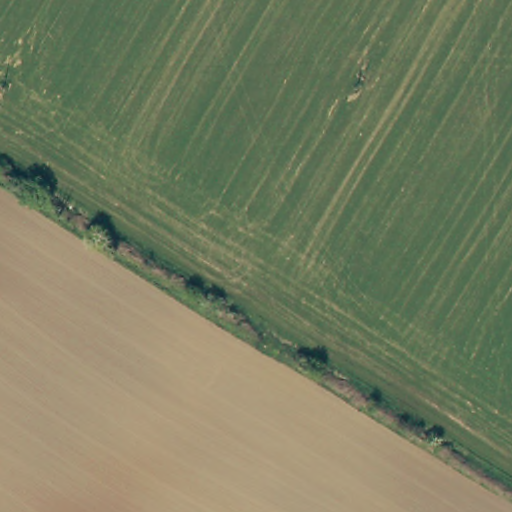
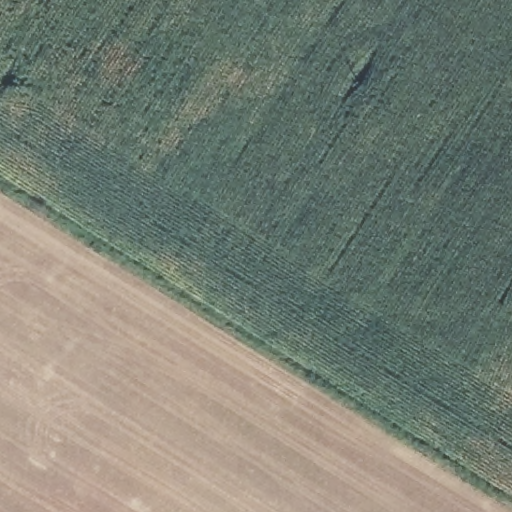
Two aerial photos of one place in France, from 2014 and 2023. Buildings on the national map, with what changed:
[]

